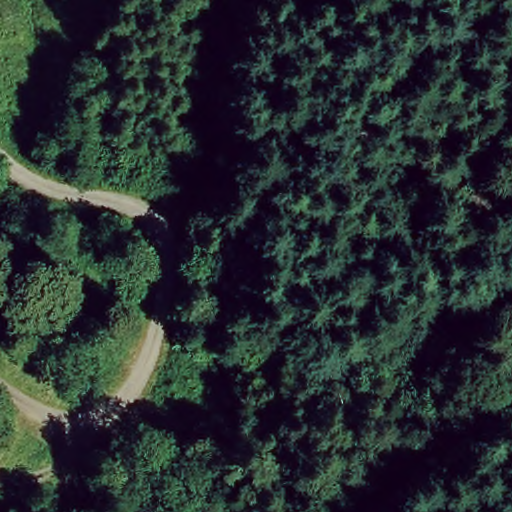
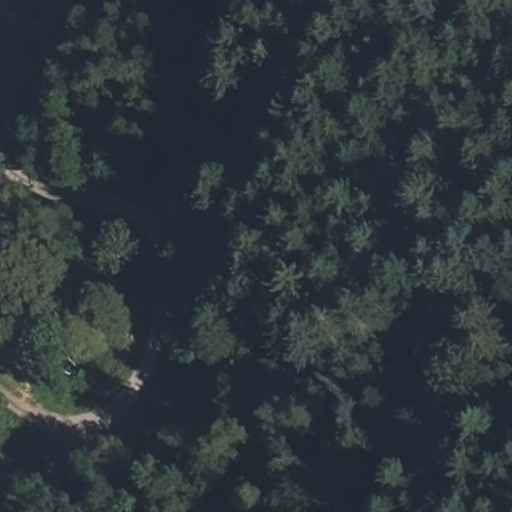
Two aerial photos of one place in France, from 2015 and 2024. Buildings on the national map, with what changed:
unchanged [(143,435),(168,465),(125,495),(102,467),(143,435)]

